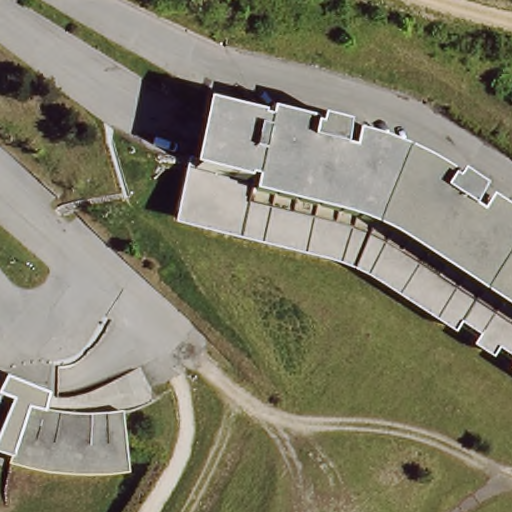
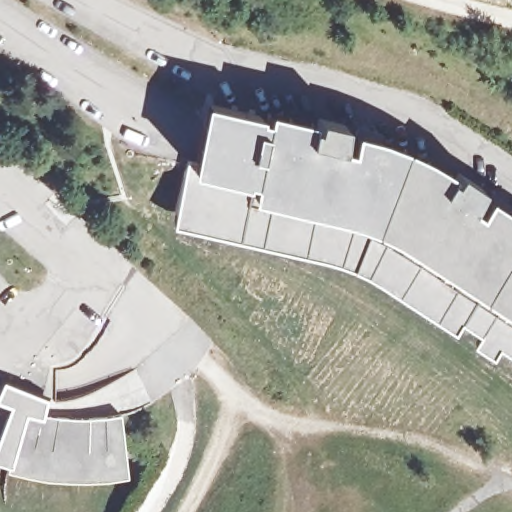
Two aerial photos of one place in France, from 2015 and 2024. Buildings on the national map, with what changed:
unchanged [(220,106),(270,116),(270,120),(278,120),(280,116),(329,126),(331,120),(355,126),(350,150),(362,150),(367,136),(401,149),(428,159),(451,172),(465,181),(469,175),(490,190),(478,209),(489,212),(497,204),(512,213),(512,351),(490,335),(442,307),(410,285),(392,275),(376,266),(357,261),(326,252),(240,231),(185,217),(197,161),(207,162),(220,106)]
unchanged [(45,406),(41,426),(67,428),(84,427),(100,427),(119,425),(124,475),(95,476),(72,476),(56,475),(39,474),(20,470),(0,463),(0,392),(1,390),(45,406)]

